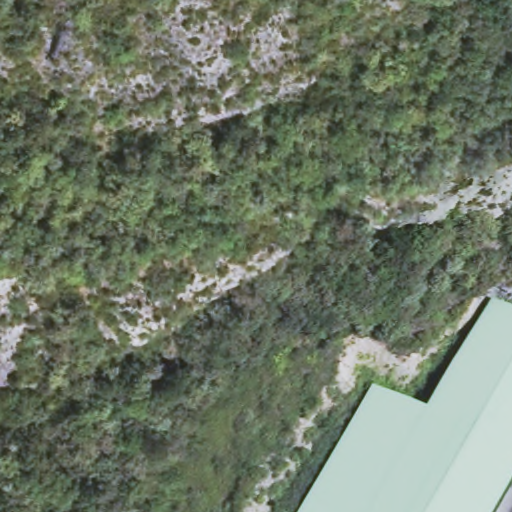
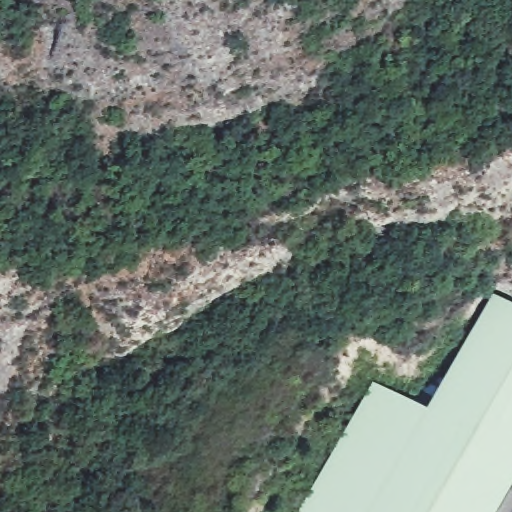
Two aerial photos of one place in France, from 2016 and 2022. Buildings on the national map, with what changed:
unchanged [(423,411),(492,296),(512,307),(512,456),(480,512),(299,512),(374,384),(423,411)]
unchanged [(480,512),(512,456),(512,512),(480,512)]

